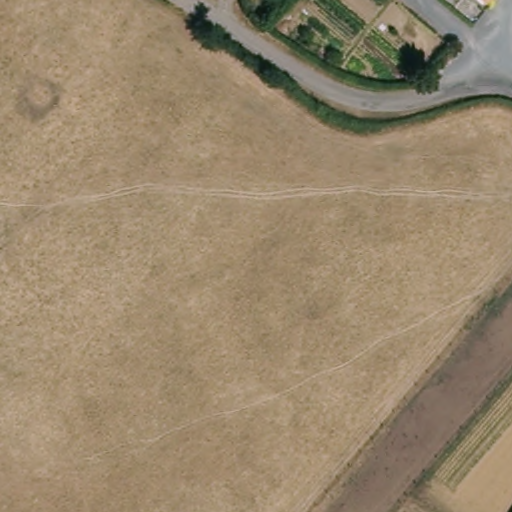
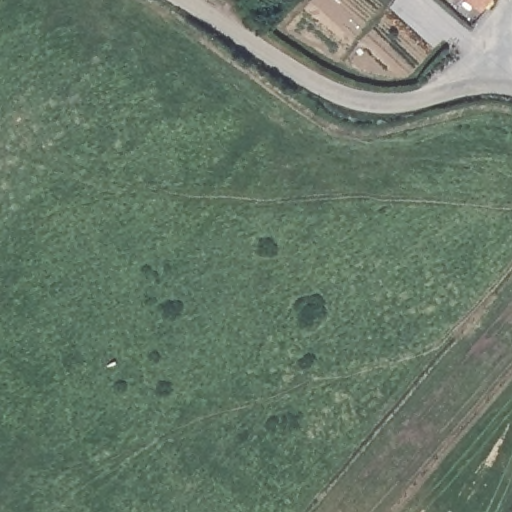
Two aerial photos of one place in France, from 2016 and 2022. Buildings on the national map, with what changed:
unchanged [(494,15),(473,0),(503,0),(494,16),(494,15)]

